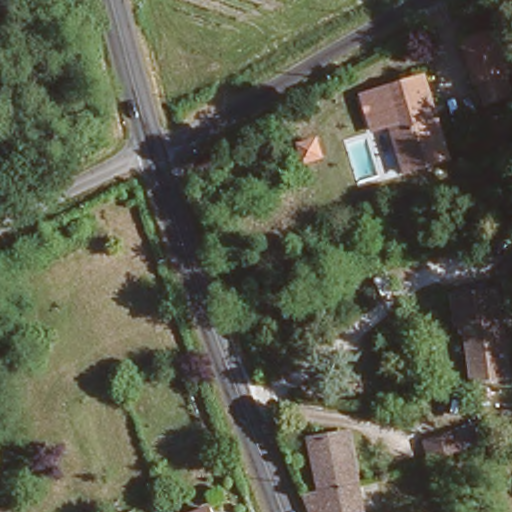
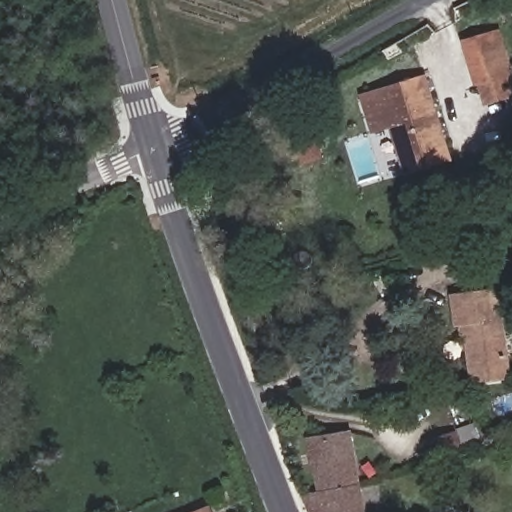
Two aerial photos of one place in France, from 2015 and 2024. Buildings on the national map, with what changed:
unchanged [(477,94),(471,74),(461,34),(497,24),(506,66),(511,85),(477,94)]
unchanged [(422,76),(447,158),(401,170),(387,122),(372,125),(362,94),(422,76)]
unchanged [(501,300),(510,371),(472,376),(467,346),(471,345),(470,337),(458,339),(455,306),(501,300)]
unchanged [(467,431),(472,451),(467,453),(440,461),(433,441),(467,431)]
unchanged [(320,489),(312,441),(350,434),(357,481),(320,489)]
unchanged [(303,492),(320,489),(357,481),(362,512),(310,512),(303,492)]
unchanged [(208,503),(212,512),(187,512),(208,503)]

